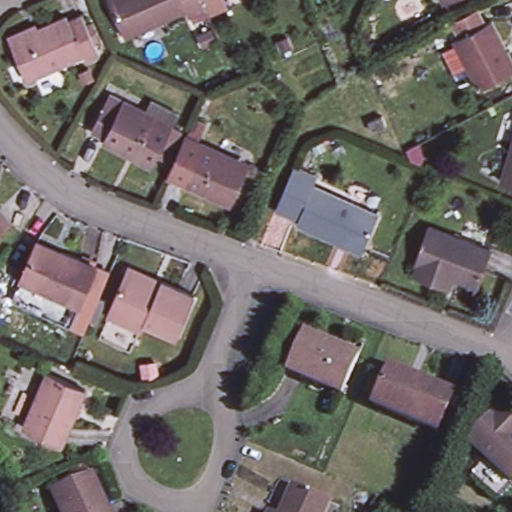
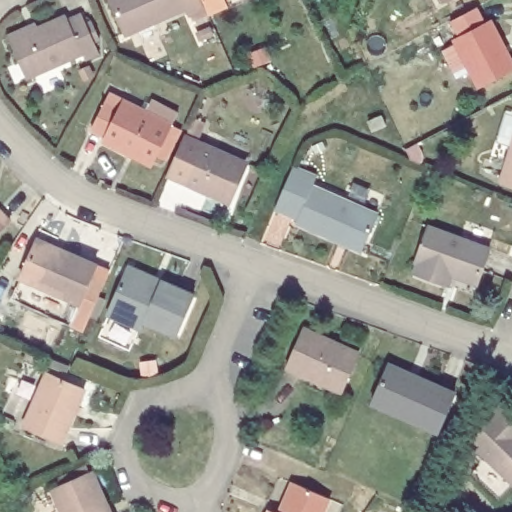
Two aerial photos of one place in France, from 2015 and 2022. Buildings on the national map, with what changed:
unchanged [(187,5),(127,30),(113,0),(204,0),(206,4),(191,10),(187,5)]
unchanged [(208,10),(206,4),(204,0),(225,0),(227,3),(208,10)]
unchanged [(442,0),(452,0),(445,4),(442,0)]
unchanged [(512,59),(512,75),(480,91),(453,43),(460,40),(452,24),(478,10),(487,26),(493,22),(512,59)]
unchanged [(66,17),(69,22),(82,16),(99,55),(86,60),(84,55),(27,80),(11,40),(66,17)]
unchanged [(100,105),(114,110),(118,102),(168,126),(149,162),(127,151),(124,155),(98,141),(100,137),(87,131),(100,105)]
unchanged [(369,122),(382,116),(386,125),(372,131),(369,122)]
unchanged [(225,200),(182,182),(165,175),(181,135),(188,119),(202,124),(194,140),(200,144),(241,161),(225,200)]
unchanged [(512,151),(512,185),(502,181),(512,151)]
unchanged [(295,169),(317,179),(314,187),(379,216),(362,252),(297,224),(300,220),(277,210),(295,169)]
unchanged [(0,232),(0,213),(10,223),(0,232)]
unchanged [(419,265),(416,265),(430,227),(490,249),(477,285),(447,275),(443,284),(416,274),(419,265)]
unchanged [(37,237),(62,247),(62,245),(97,261),(96,263),(80,300),(21,275),(37,237)]
unchanged [(13,292),(21,275),(80,300),(96,263),(111,269),(87,324),(13,292)]
unchanged [(177,336),(146,323),(142,330),(108,315),(126,275),(129,267),(162,281),(195,295),(177,336)]
unchanged [(304,330),(359,354),(342,393),(287,369),(304,330)]
unchanged [(389,365),(455,393),(439,432),(372,405),(389,365)]
unchanged [(48,375),(86,390),(62,443),(25,427),(48,375)]
unchanged [(480,415),(482,416),(485,408),(512,420),(512,422),(509,430),(512,431),(512,472),(465,451),(480,415)]
unchanged [(52,487),(92,469),(108,501),(103,503),(107,512),(63,512),(52,487)]
unchanged [(293,485),(330,502),(325,512),(281,512),(293,485)]

